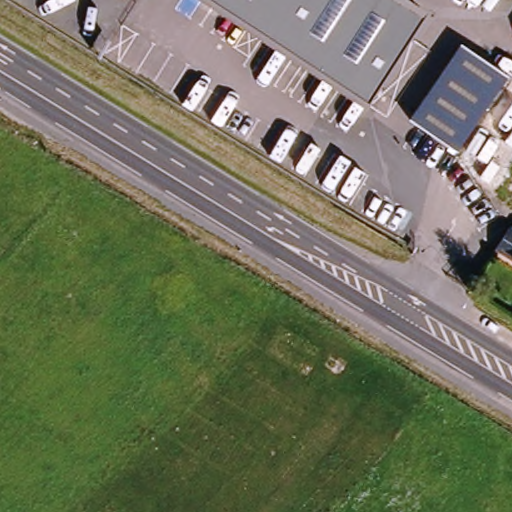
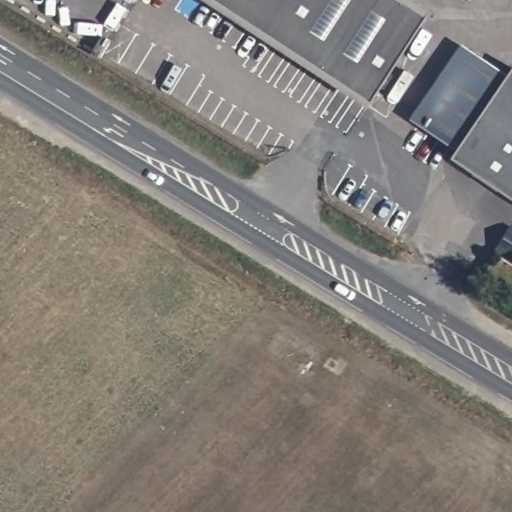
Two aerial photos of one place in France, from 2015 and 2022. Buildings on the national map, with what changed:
unchanged [(429,17),(367,111),(195,0),(402,0),(429,17)]
unchanged [(476,56),(506,76),(455,152),(425,132),(410,122),(461,46),(476,56)]
new [(451,159),(455,152),(506,76),(512,69),(512,201),(451,159)]
unchanged [(494,246),(507,225),(512,218),(512,258),(494,246)]

